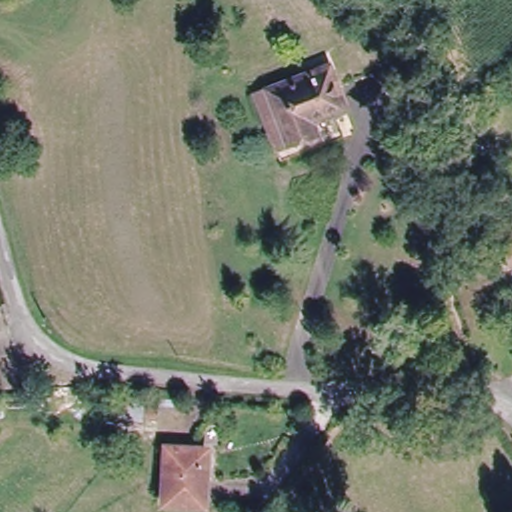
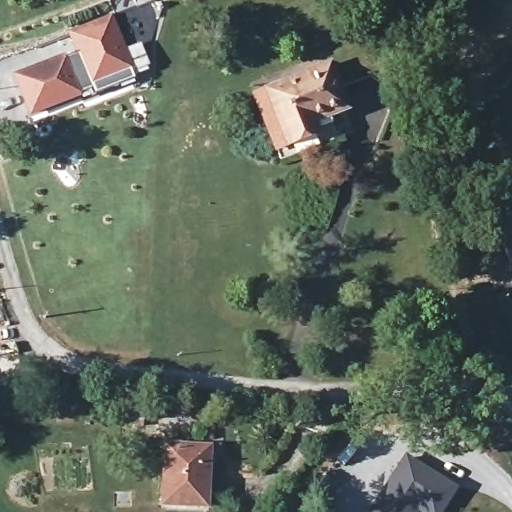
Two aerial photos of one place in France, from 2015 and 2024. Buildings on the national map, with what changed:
new [(134,68),(130,69),(135,79),(92,95),(90,91),(29,116),(13,75),(63,55),(65,58),(76,53),(68,31),(111,14),(134,68)]
unchanged [(255,89),(268,83),(322,60),(343,103),(315,114),(321,126),(294,138),(279,144),(255,89)]
unchanged [(501,263),(488,220),(512,214),(512,260),(501,263)]
unchanged [(160,399),(159,414),(146,414),(144,423),(118,422),(121,398),(160,399)]
unchanged [(172,449),(211,450),(206,504),(166,501),(172,449)]
new [(418,511),(417,512),(369,512),(409,456),(459,488),(443,512),(419,512),(418,511)]

